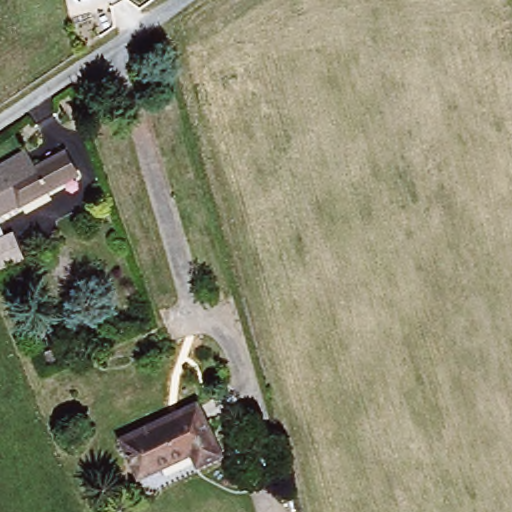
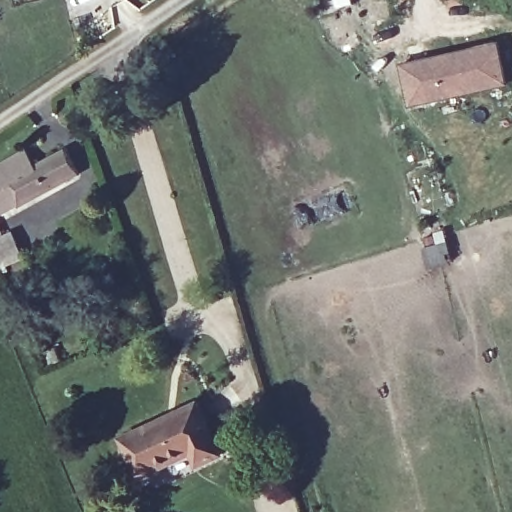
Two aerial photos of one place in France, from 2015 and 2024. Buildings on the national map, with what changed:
new [(493,45),(500,87),(417,102),(409,61),(493,45)]
unchanged [(0,201),(0,165),(34,146),(43,161),(73,145),(86,168),(6,212),(0,201)]
unchanged [(1,235),(0,233),(0,219),(5,217),(11,231),(21,227),(32,252),(7,263),(0,245),(0,235),(1,235)]
unchanged [(137,477),(120,438),(195,402),(219,453),(196,465),(190,452),(137,477)]

